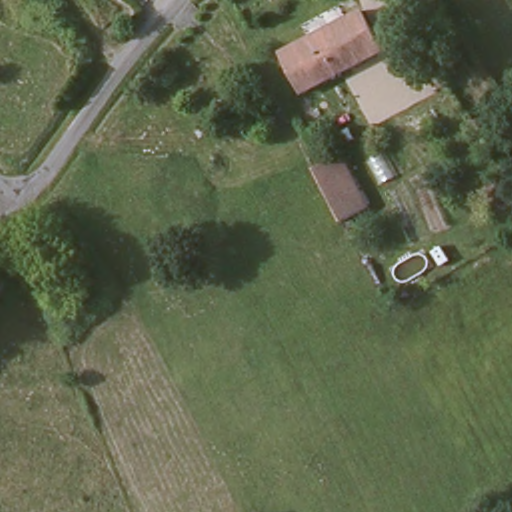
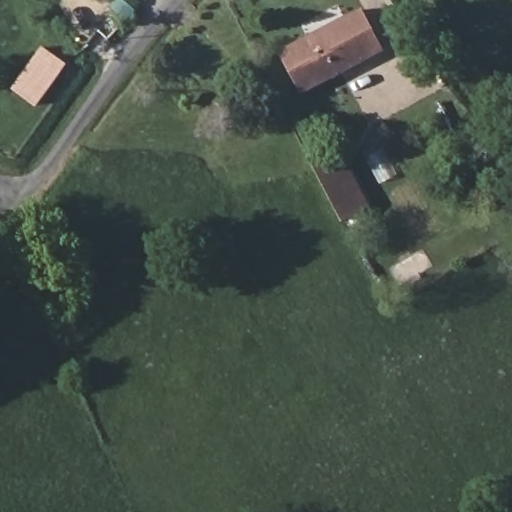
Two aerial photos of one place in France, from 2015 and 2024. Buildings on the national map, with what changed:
unchanged [(305,94),(283,55),(364,14),(384,52),(305,94)]
new [(42,47),(67,64),(37,107),(12,91),(42,47)]
unchanged [(375,212),(347,224),(319,170),(345,156),(375,212)]

